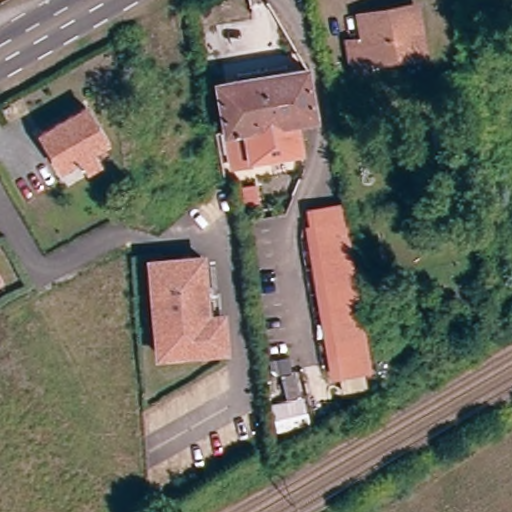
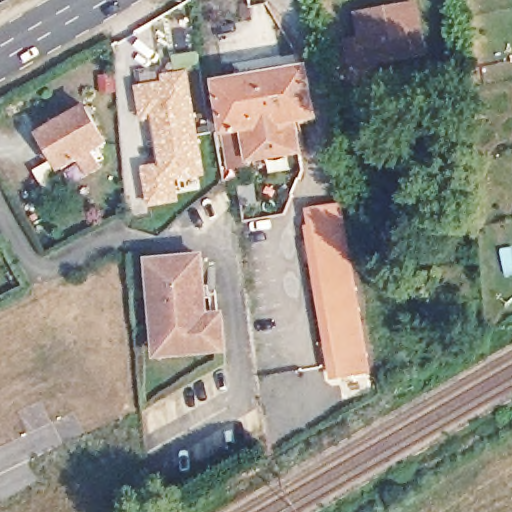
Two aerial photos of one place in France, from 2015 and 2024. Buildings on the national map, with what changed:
unchanged [(429,57),(379,66),(380,74),(365,76),(360,45),(371,44),(367,20),(422,11),(429,57)]
new [(159,79),(158,73),(173,71),(171,55),(197,51),(200,67),(189,69),(205,177),(177,182),(180,202),(146,207),(139,166),(157,162),(150,120),(138,121),(132,84),(159,79)]
unchanged [(311,120),(293,123),(298,155),(249,163),(242,132),(224,136),(215,90),(302,75),(311,120)]
unchanged [(82,110),(105,146),(91,154),(98,167),(85,175),(77,162),(60,172),(39,134),(82,110)]
unchanged [(369,359),(340,365),(312,216),(341,211),(369,359)]
unchanged [(157,335),(156,322),(154,303),(152,282),(150,260),(160,260),(201,256),(204,285),(205,290),(207,316),(222,314),(225,347),(169,352),(159,353),(157,335)]

